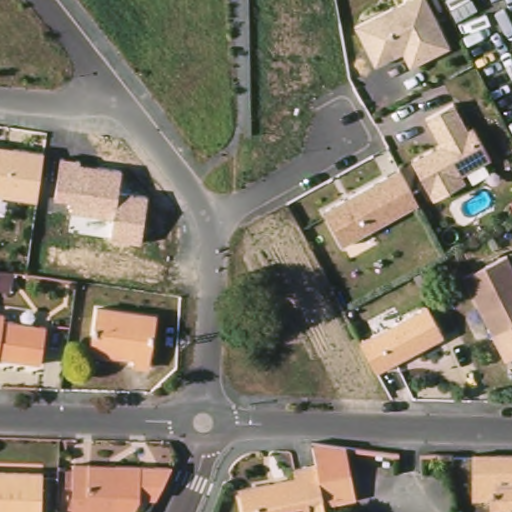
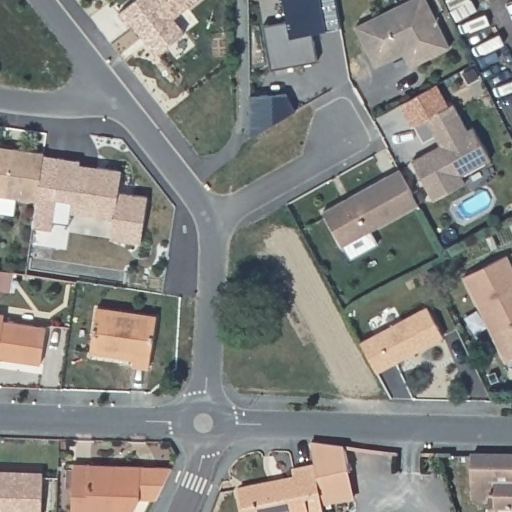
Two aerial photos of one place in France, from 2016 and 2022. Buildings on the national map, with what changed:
new [(130,29),(119,13),(135,0),(198,0),(176,16),(187,30),(158,53),(134,24),(130,29)]
new [(291,0),(329,0),(331,13),(318,15),(323,44),(277,53),(268,8),(292,3),(291,0)]
unchanged [(422,0),(446,46),(407,65),(398,53),(371,66),(351,26),(404,0),(422,0)]
new [(286,93),(296,110),(251,135),(250,95),(286,93)]
unchanged [(453,104),(468,130),(473,127),(491,159),(462,175),(466,183),(434,200),(412,161),(441,145),(436,136),(426,119),(453,104)]
unchanged [(36,202),(0,197),(0,144),(45,149),(36,202)]
unchanged [(82,158),(81,164),(123,169),(120,190),(148,194),(141,244),(111,240),(113,218),(74,214),(70,200),(54,199),(60,156),(82,158)]
unchanged [(417,205),(342,247),(322,212),(399,170),(417,205)]
unchanged [(512,256),(512,327),(498,334),(470,277),(512,256)]
unchanged [(0,291),(0,270),(11,272),(9,292),(0,291)]
unchanged [(375,334),(402,320),(427,307),(443,337),(377,372),(361,342),(375,334)]
unchanged [(96,352),(102,309),(162,318),(155,369),(138,366),(139,359),(118,356),(96,352)]
unchanged [(0,363),(0,313),(10,315),(9,322),(51,328),(46,364),(3,358),(3,364),(0,363)]
unchanged [(240,488),(296,477),(294,469),(317,464),(314,451),(312,442),(313,442),(346,447),(350,471),(356,498),(324,504),(326,512),(244,512),(240,488)]
unchanged [(495,509),(495,499),(478,499),(478,454),(512,454),(512,510),(495,509)]
unchanged [(78,487),(71,487),(72,468),(79,468),(79,463),(96,464),(121,465),(177,468),(161,499),(139,498),(136,512),(77,512),(78,487)]
unchanged [(0,471),(48,473),(46,512),(0,512),(0,471)]

